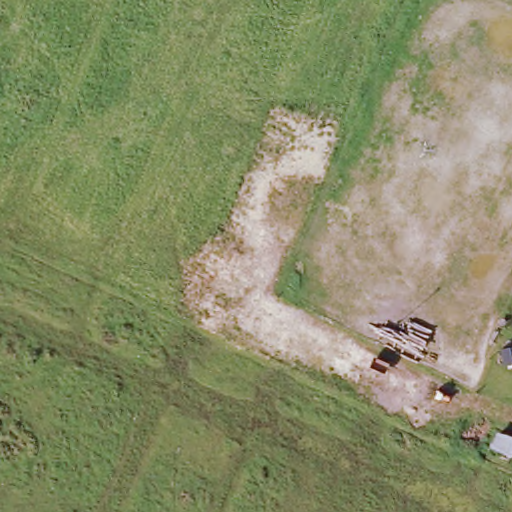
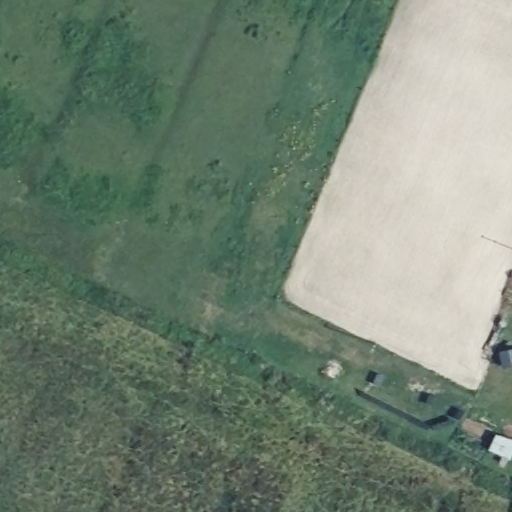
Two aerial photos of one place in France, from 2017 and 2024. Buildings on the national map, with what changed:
unchanged [(512,456),(509,462),(484,452),(494,430),(512,438),(512,456)]

